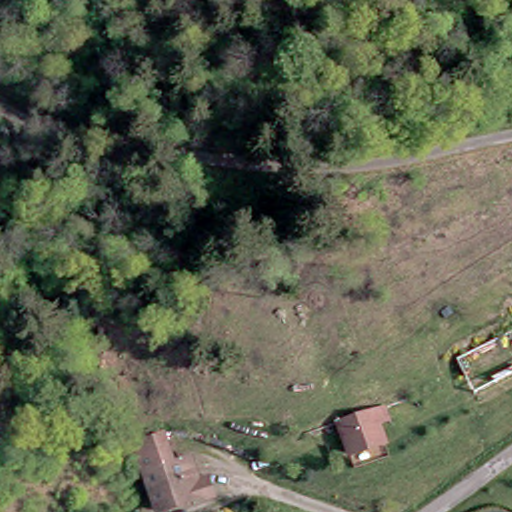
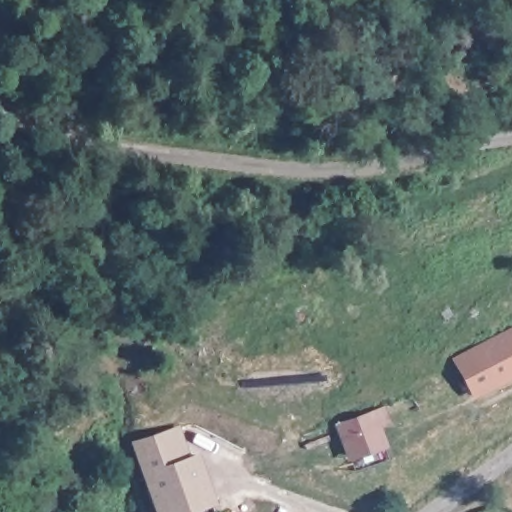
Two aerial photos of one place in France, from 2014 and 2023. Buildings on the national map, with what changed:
new [(452,357),(512,328),(512,379),(472,399),(452,357)]
unchanged [(373,413),(384,409),(388,421),(376,425),(383,444),(349,456),(339,425),(373,413)]
unchanged [(148,432),(159,463),(177,457),(191,497),(193,504),(183,507),(181,503),(180,503),(152,512),(149,512),(123,440),(148,432)]

